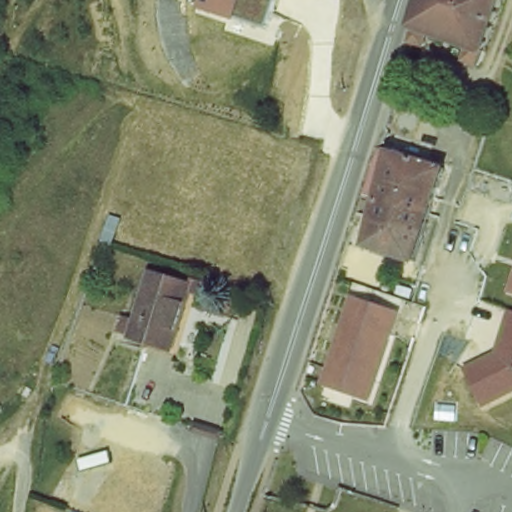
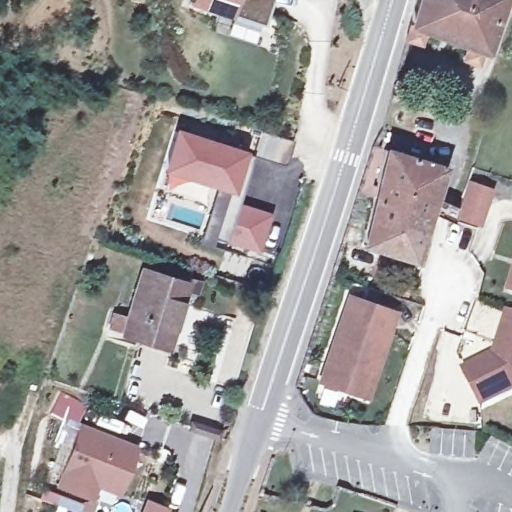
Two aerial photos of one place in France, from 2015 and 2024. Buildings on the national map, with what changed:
unchanged [(192,0),(275,0),(267,26),(230,15),(227,20),(189,11),(192,0)]
unchanged [(458,60),(462,46),(420,34),(415,47),(400,43),(405,26),(412,0),(495,0),(473,64),(458,60)]
new [(240,205),(270,215),(259,251),(228,241),(227,243),(214,239),(230,189),(166,169),(179,131),(255,156),(240,205)]
unchanged [(346,243),(357,209),(369,213),(373,214),(387,159),(382,158),(385,149),(447,168),(416,260),(365,244),(363,250),(355,247),(346,243)]
new [(493,189),(481,228),(455,220),(466,181),(493,189)]
unchanged [(512,260),(512,284),(505,282),(512,260)]
unchanged [(185,285),(165,348),(121,335),(106,330),(112,311),(127,316),(142,272),(185,285)]
unchanged [(367,398),(309,381),(339,292),(396,309),(367,398)]
unchanged [(512,387),(477,404),(460,370),(490,355),(505,312),(512,314),(512,387)]
new [(71,450),(55,443),(62,421),(48,414),(60,393),(87,406),(78,423),(138,445),(118,498),(96,489),(92,502),(55,487),(71,450)]
demolished [(106,461),(141,478),(126,509),(110,501),(90,492),(106,461)]
new [(167,508),(166,512),(138,512),(143,498),(167,508)]

